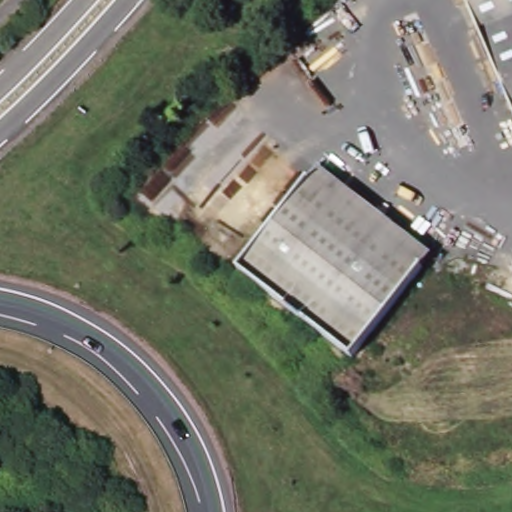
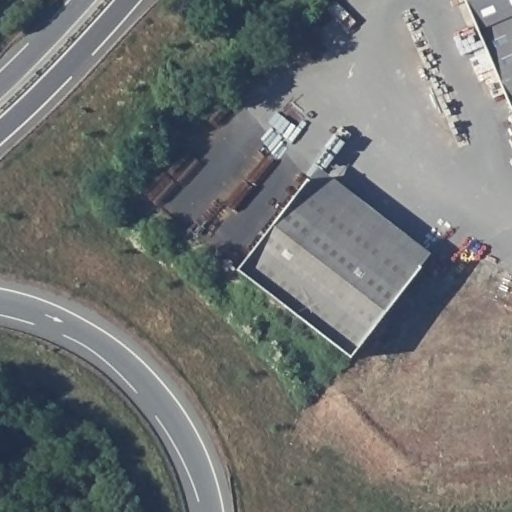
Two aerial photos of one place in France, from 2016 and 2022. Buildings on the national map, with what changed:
unchanged [(465,0),(512,0),(512,109),(465,0)]
unchanged [(288,314),(229,262),(305,175),(404,262),(413,270),(337,357),(288,314)]

